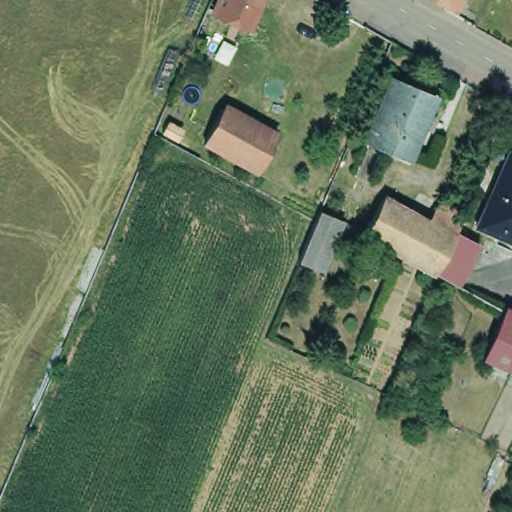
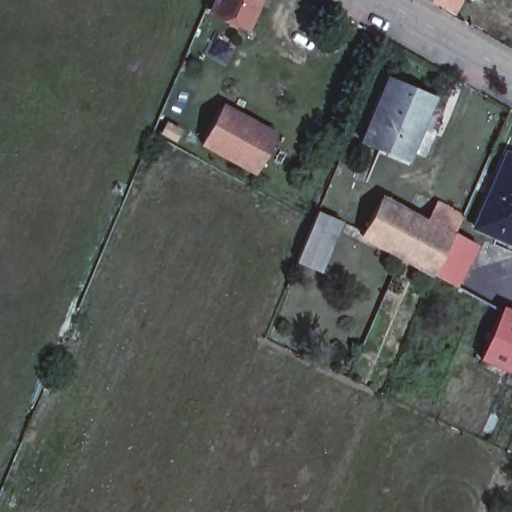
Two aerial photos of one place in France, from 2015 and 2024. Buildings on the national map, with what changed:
unchanged [(210,10),(215,0),(259,0),(247,26),(210,10)]
unchanged [(430,0),(450,0),(446,7),(430,0)]
unchanged [(388,77),(432,97),(425,114),(433,117),(427,132),(418,129),(405,161),(361,141),(388,77)]
unchanged [(238,119),(272,138),(253,173),(202,145),(220,110),(238,119)]
unchanged [(512,158),(512,234),(478,218),(503,162),(506,155),(512,158)]
unchanged [(467,263),(452,291),(430,279),(360,241),(380,204),(425,227),(435,208),(461,223),(453,237),(475,249),(467,263)]
unchanged [(323,212),(341,220),(321,270),(302,262),(323,212)]
unchanged [(512,372),(477,358),(497,312),(512,318),(512,372)]

